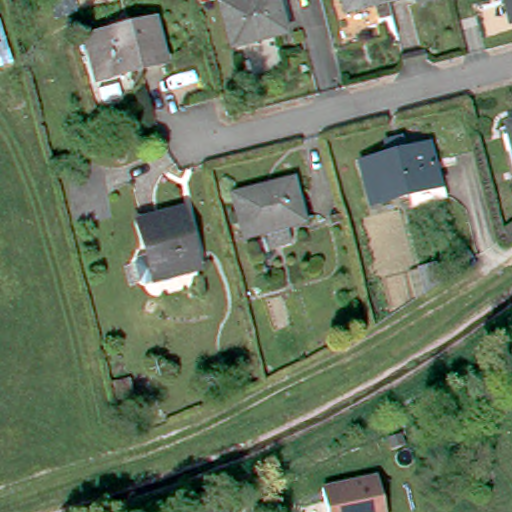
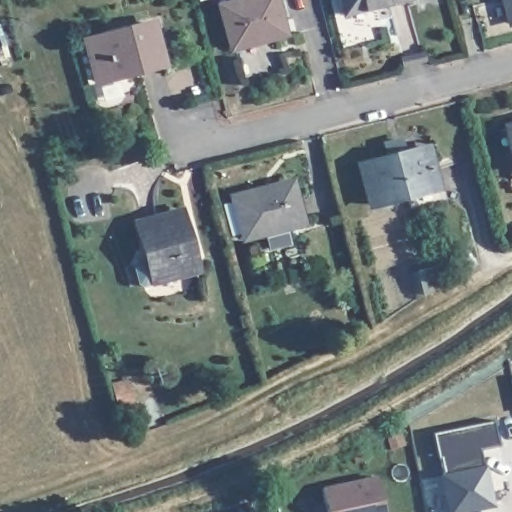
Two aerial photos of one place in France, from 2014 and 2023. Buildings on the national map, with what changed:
unchanged [(286,35),(232,50),(221,7),(244,0),(276,0),(286,35)]
unchanged [(347,14),(343,0),(398,0),(347,14)]
unchanged [(504,0),(512,0),(512,19),(509,20),(504,0)]
unchanged [(163,61),(97,78),(86,37),(152,20),(163,61)]
unchanged [(512,123),(512,132),(509,124),(512,123)]
unchanged [(376,207),(365,167),(390,160),(387,147),(403,143),(406,156),(427,151),(438,190),(376,207)]
unchanged [(304,220),(247,235),(236,195),(293,180),(304,220)]
unchanged [(196,268),(155,279),(139,221),(180,211),(196,268)]
unchanged [(428,293),(421,268),(438,264),(443,285),(428,293)]
new [(480,450),(484,467),(492,505),(477,507),(478,512),(448,512),(441,475),(443,475),(439,458),(438,458),(432,432),(494,420),(499,446),(480,450)]
unchanged [(331,512),(324,483),(379,471),(388,512),(331,512)]

